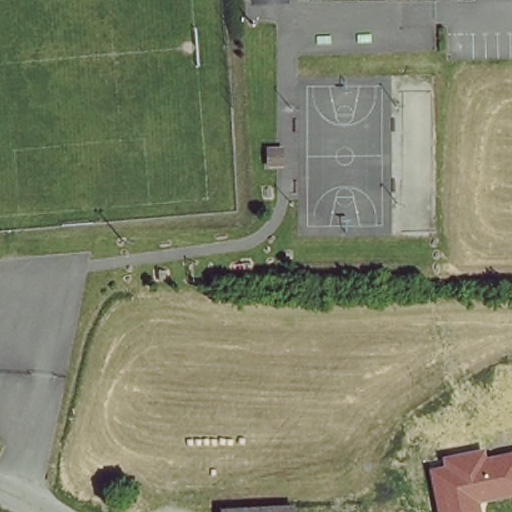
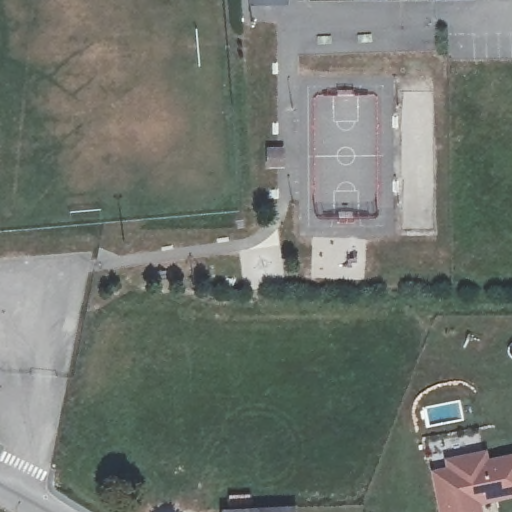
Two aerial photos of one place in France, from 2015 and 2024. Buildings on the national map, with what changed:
unchanged [(445,467),(442,457),(485,451),(487,459),(512,454),(512,498),(480,503),(482,512),(439,512),(430,470),(445,467)]
unchanged [(222,512),(222,508),(297,504),(298,512),(222,512)]

